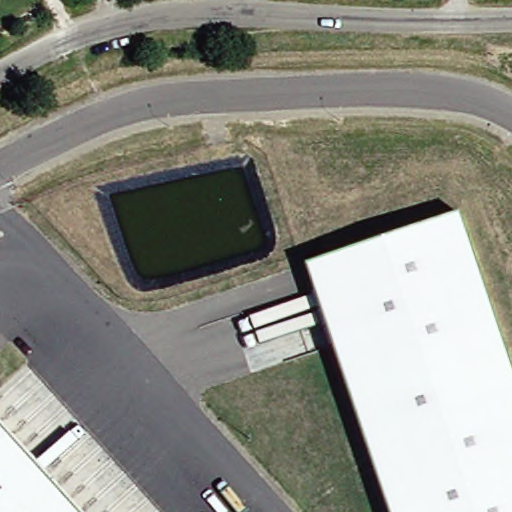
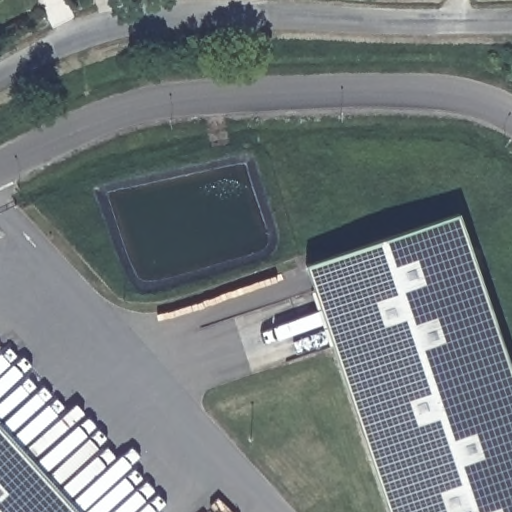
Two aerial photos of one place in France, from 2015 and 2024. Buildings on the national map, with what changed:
unchanged [(512,349),(512,512),(394,512),(312,260),(467,210),(512,349)]
unchanged [(87,512),(0,512),(0,417),(87,512)]

